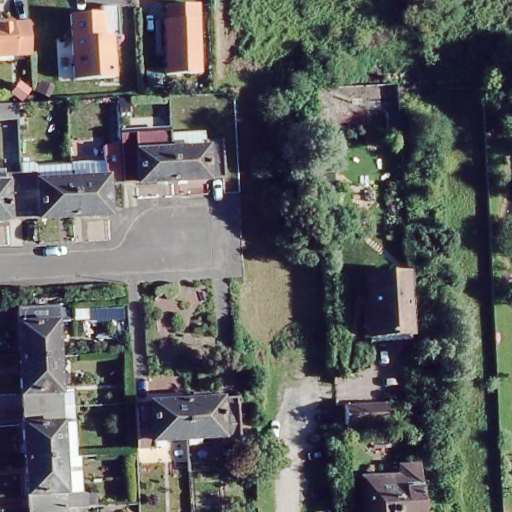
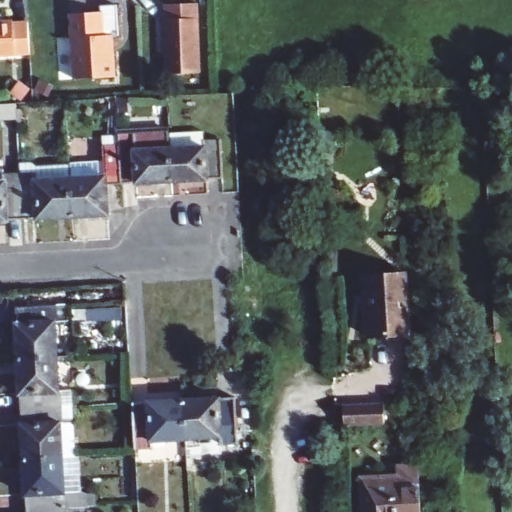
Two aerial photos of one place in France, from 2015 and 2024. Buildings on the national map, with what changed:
unchanged [(75,12),(105,10),(104,4),(120,2),(123,34),(117,34),(120,75),(80,77),(75,12)]
unchanged [(205,74),(172,75),(170,21),(172,21),(172,6),(203,5),(205,74)]
unchanged [(0,20),(17,19),(17,21),(32,20),(32,24),(32,32),(33,40),(34,47),(34,49),(34,51),(0,53),(0,20)]
unchanged [(22,101),(23,117),(0,118),(0,102),(19,101),(22,101)]
unchanged [(170,136),(170,150),(172,183),(122,186),(120,147),(120,140),(170,136)]
unchanged [(170,150),(205,149),(205,142),(221,141),(223,180),(172,183),(170,150)]
unchanged [(105,164),(105,147),(120,147),(122,186),(107,187),(109,216),(74,219),(71,166),(105,164)]
unchanged [(74,219),(24,221),(21,175),(36,174),(35,168),(71,166),(74,219)]
unchanged [(0,172),(5,172),(5,175),(21,175),(24,221),(0,222),(0,172)]
unchanged [(369,335),(367,303),(365,273),(370,273),(409,271),(412,332),(369,335)]
unchanged [(20,356),(17,305),(68,302),(69,320),(57,320),(59,354),(20,356)]
unchanged [(60,388),(72,387),(73,403),(23,406),(20,356),(59,354),(60,388)]
unchanged [(240,393),(242,440),(227,441),(225,434),(190,435),(189,396),(240,393)]
unchanged [(189,396),(190,435),(157,437),(157,445),(140,446),(138,400),(189,396)]
unchanged [(76,453),(26,456),(23,406),(73,403),(76,453)]
unchanged [(26,456),(76,453),(79,502),(67,503),(29,505),(26,456)]
unchanged [(426,512),(368,512),(367,478),(406,477),(405,466),(424,465),(426,512)]
unchanged [(29,505),(67,503),(67,512),(29,512),(29,505)]

